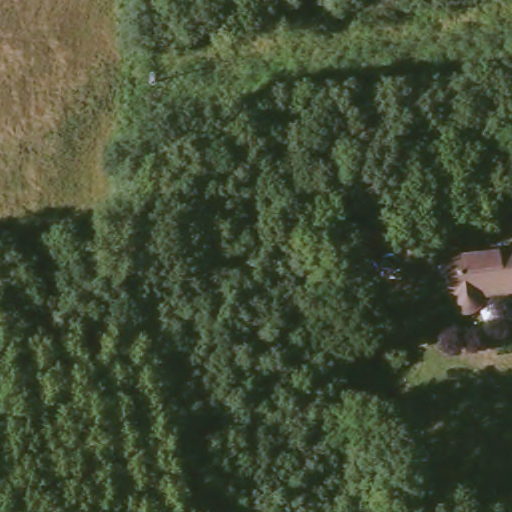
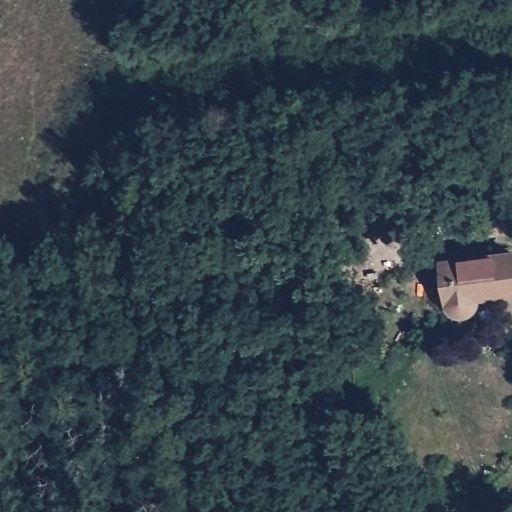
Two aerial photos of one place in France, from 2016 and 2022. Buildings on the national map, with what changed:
unchanged [(479,294),(478,310),(470,316),(462,316),(454,313),(450,305),(442,261),(512,247),(512,289),(479,294)]

